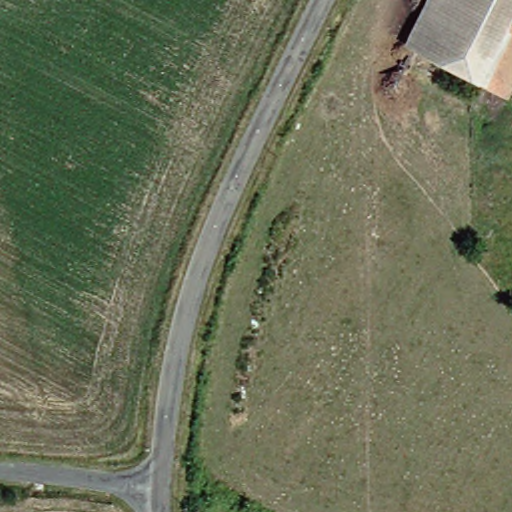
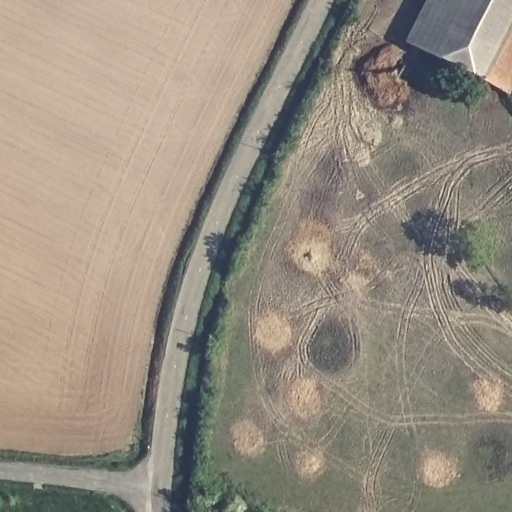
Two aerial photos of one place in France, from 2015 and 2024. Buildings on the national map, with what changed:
unchanged [(406,45),(427,0),(512,0),(512,22),(512,91),(510,94),(406,45)]

